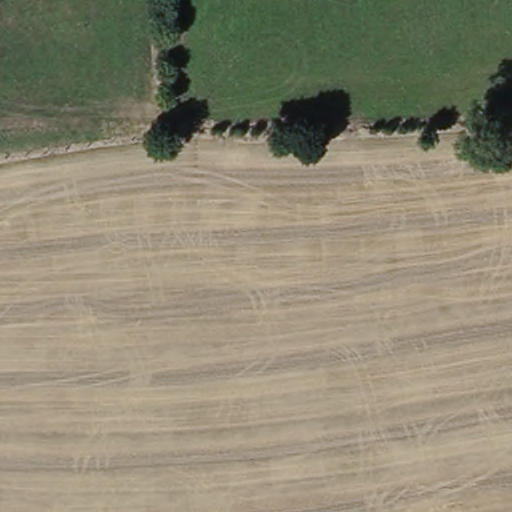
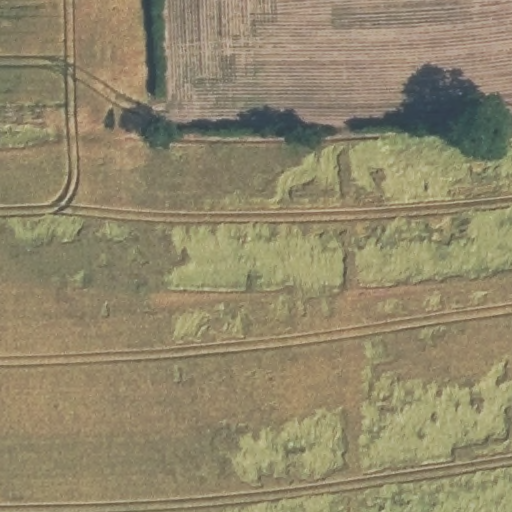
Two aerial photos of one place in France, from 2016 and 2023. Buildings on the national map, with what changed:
[]

